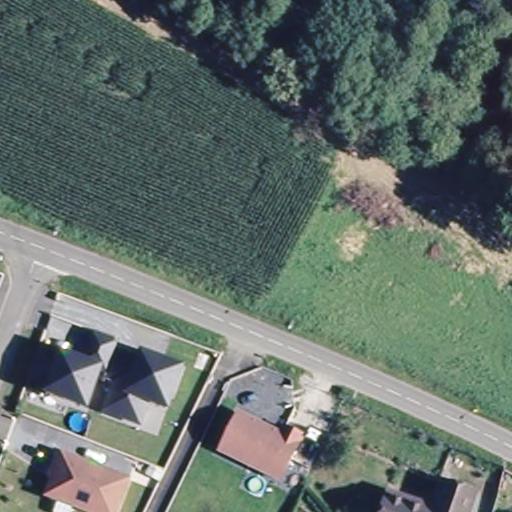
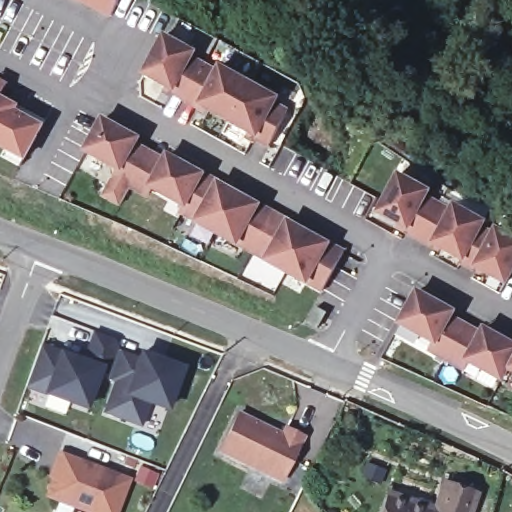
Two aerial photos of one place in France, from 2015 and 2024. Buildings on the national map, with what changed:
new [(75,0),(121,0),(110,20),(75,0)]
new [(166,36),(195,52),(192,58),(205,65),(186,100),(172,92),(174,89),(146,73),(166,36)]
new [(205,65),(218,72),(222,67),(250,83),(230,120),(202,105),(200,108),(186,100),(205,65)]
new [(250,83),(278,98),(275,104),(289,112),(270,146),(255,139),(257,135),(230,120),(250,83)]
new [(19,109),(47,125),(26,160),(0,146),(0,93),(21,104),(19,109)]
new [(147,195),(132,187),(122,204),(106,195),(121,170),(87,150),(104,119),(139,139),(136,144),(151,152),(165,160),(169,155),(204,175),(219,183),(239,194),(217,232),(182,213),(186,205),(152,187),(147,195)]
new [(400,175),(429,191),(426,197),(440,205),(420,240),(406,231),(408,228),(380,212),(400,175)]
new [(309,233),(287,271),(252,252),(217,232),(239,194),(259,205),(274,214),(289,222),(309,233)]
new [(440,205),(452,212),(456,206),(485,222),(482,228),(464,259),(436,244),(434,247),(420,240),(440,205)]
new [(464,259),(482,228),(482,229),(495,235),(497,230),(512,238),(512,273),(507,282),(478,267),(476,270),(462,262),(464,259)]
new [(329,244),(344,252),(330,279),(323,291),(287,271),(309,233),(329,244)]
new [(485,328),(512,343),(512,363),(509,368),(503,380),(468,360),(464,370),(447,360),(431,351),(436,342),(401,323),(418,291),(454,311),(451,317),(467,326),(482,334),(485,328)]
unchanged [(87,406),(26,385),(29,377),(41,345),(85,361),(96,330),(115,337),(119,344),(117,348),(117,349),(141,357),(142,352),(182,366),(174,391),(155,385),(141,422),(107,410),(118,379),(107,375),(110,371),(101,367),(87,406)]
new [(509,368),(512,363),(512,370),(509,368)]
unchanged [(282,487),(221,458),(240,419),(282,439),(286,433),(304,443),(282,487)]
unchanged [(129,478),(116,512),(91,512),(53,497),(49,487),(53,477),(50,475),(52,468),(59,451),(129,478)]
unchanged [(469,512),(385,512),(393,489),(435,504),(443,480),(476,490),(469,512)]

